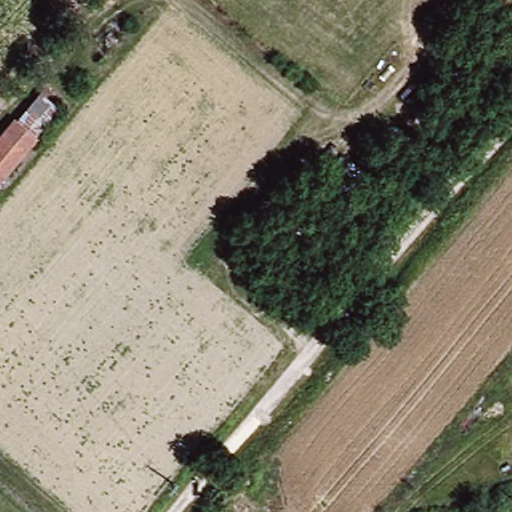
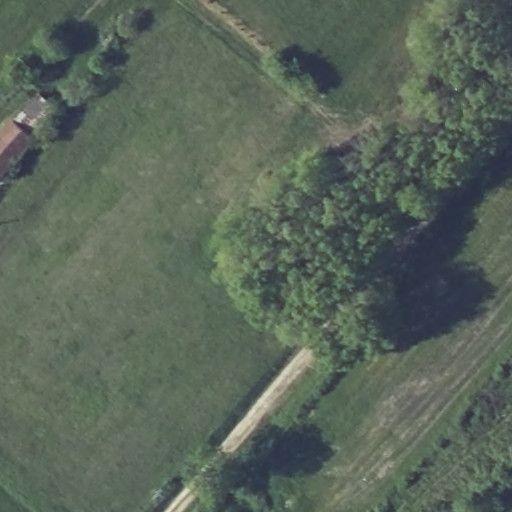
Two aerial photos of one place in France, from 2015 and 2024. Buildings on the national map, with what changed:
unchanged [(29,139),(0,176),(0,139),(11,125),(29,139)]

